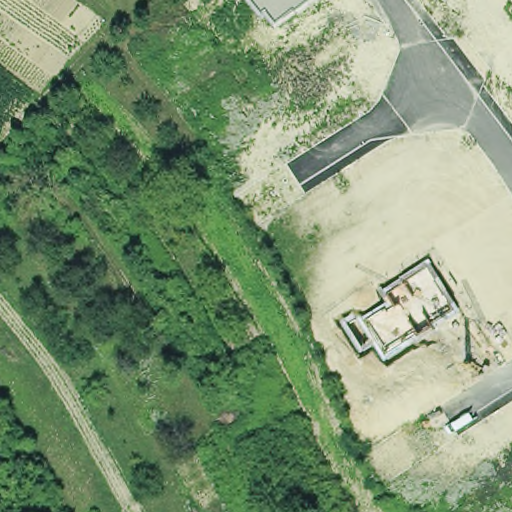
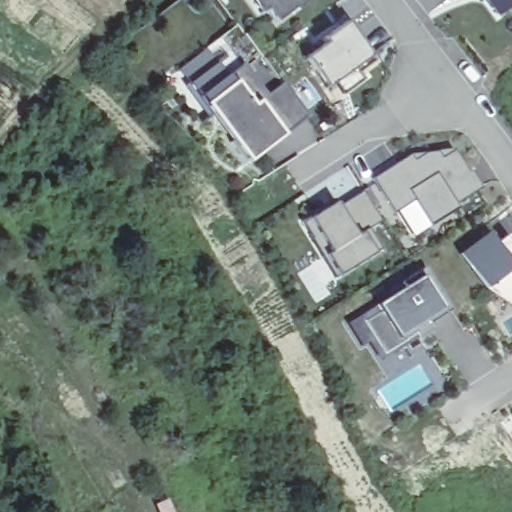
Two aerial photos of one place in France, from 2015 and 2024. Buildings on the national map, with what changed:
unchanged [(265,14),(260,17),(247,0),(315,0),(276,28),(265,14)]
new [(479,0),(512,0),(512,10),(496,22),(479,0)]
new [(343,96),(335,85),(327,90),(305,60),(325,45),(321,41),(345,24),(373,63),(357,75),(363,81),(343,96)]
new [(245,160),(243,162),(230,144),(236,140),(220,119),(219,119),(193,86),(234,55),(266,97),(282,85),(308,117),(307,119),(248,165),(245,160)]
new [(412,155),(417,159),(438,148),(443,157),(459,147),(486,193),(430,226),(413,201),(393,215),(375,180),(412,155)]
new [(380,224),(370,227),(382,253),(340,281),(310,222),(363,191),(380,224)]
new [(512,240),(512,303),(501,288),(495,293),(491,287),(487,290),(461,256),(489,235),(498,245),(510,236),(512,240)]
unchanged [(429,260),(457,308),(433,323),(437,330),(383,360),(374,345),(360,354),(339,321),(355,310),(360,317),(385,302),(379,290),(429,260)]

